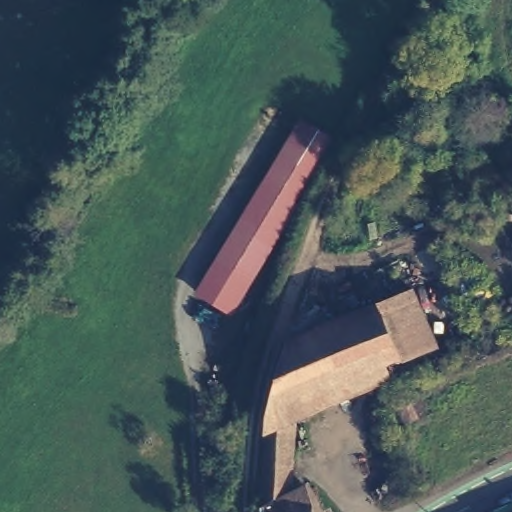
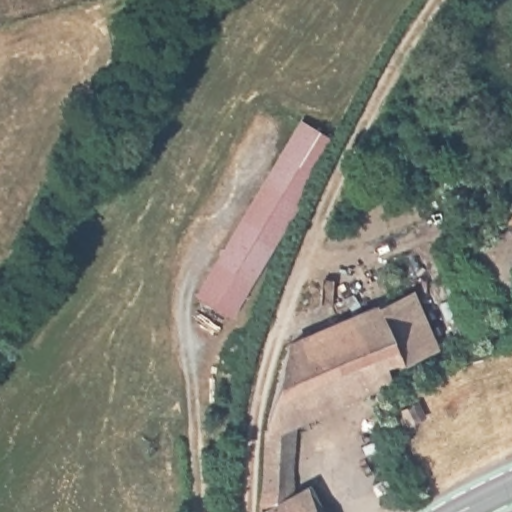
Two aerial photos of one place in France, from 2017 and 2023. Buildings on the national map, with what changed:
unchanged [(297,118),(321,133),(282,196),(287,200),(224,305),(191,287),(297,118)]
unchanged [(418,296),(438,350),(341,390),(291,409),(282,504),(287,504),(287,512),(258,512),(273,409),(292,344),(357,320),(418,296)]
unchanged [(422,417),(403,426),(395,408),(414,399),(422,417)]
unchanged [(316,512),(287,512),(310,501),(316,512)]

